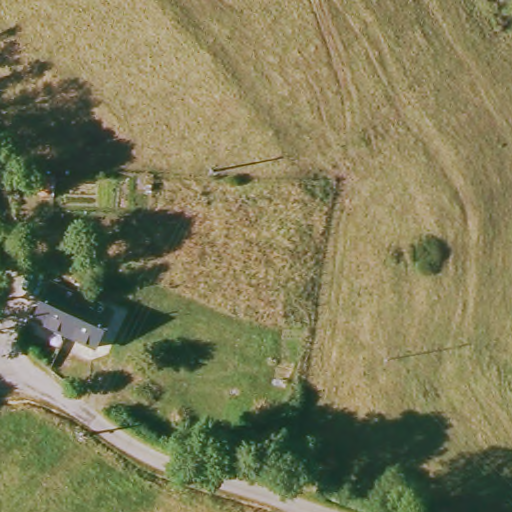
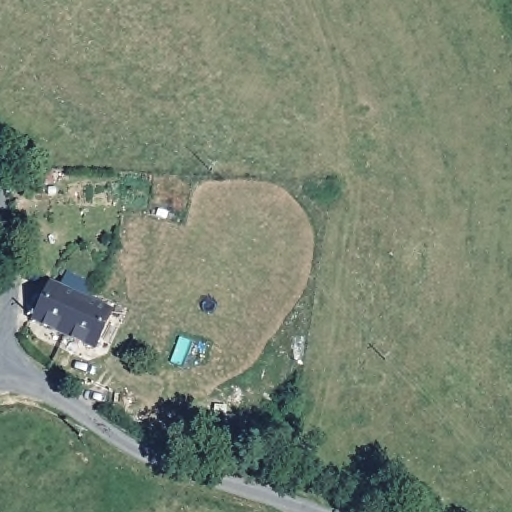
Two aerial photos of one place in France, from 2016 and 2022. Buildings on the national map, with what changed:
unchanged [(5,173),(40,171),(40,191),(7,194),(5,173)]
unchanged [(57,293),(60,282),(85,292),(81,306),(106,317),(89,353),(28,326),(46,289),(57,293)]

